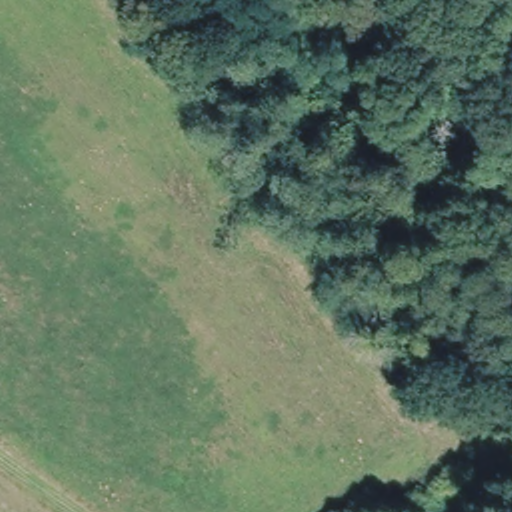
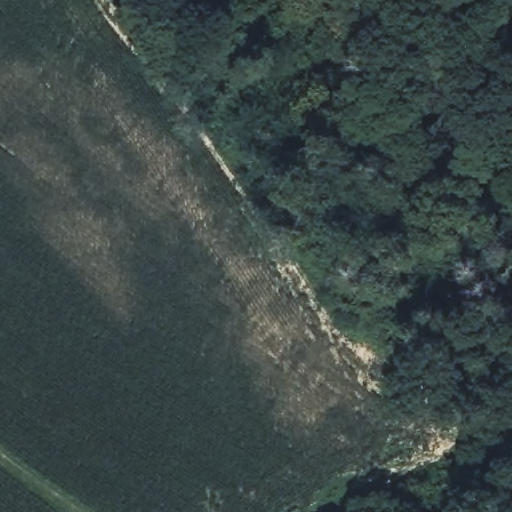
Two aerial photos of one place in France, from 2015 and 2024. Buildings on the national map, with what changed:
[]

